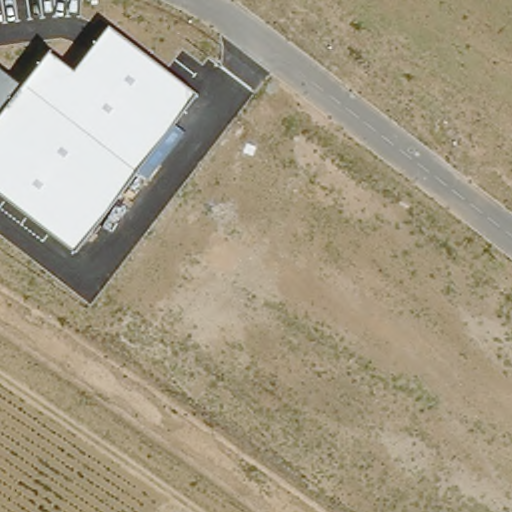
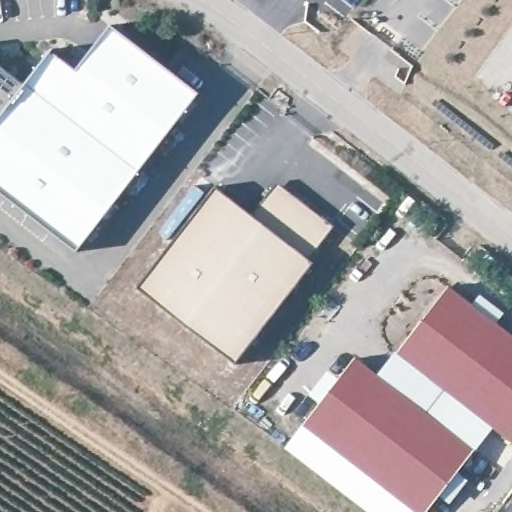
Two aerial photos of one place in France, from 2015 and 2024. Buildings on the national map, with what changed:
unchanged [(27,85),(52,53),(77,73),(112,27),(199,94),(77,253),(0,193),(0,66),(27,85)]
new [(258,215),(275,194),(279,188),(295,200),(337,232),(312,265),(316,269),(242,365),(143,288),(221,186),(258,215)]
new [(512,340),(512,445),(495,432),(400,359),(450,293),(512,340)]
new [(400,359),(495,432),(476,457),(381,383),(400,359)]
new [(381,383),(476,457),(434,512),(413,512),(307,430),(357,365),(381,383)]

